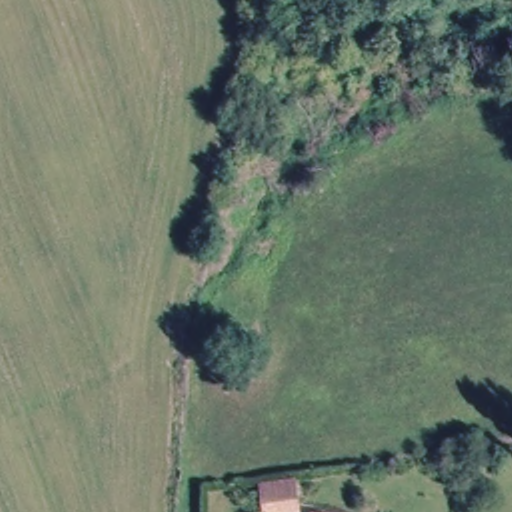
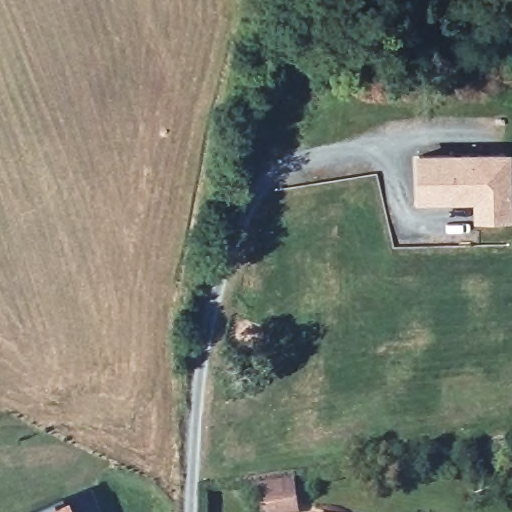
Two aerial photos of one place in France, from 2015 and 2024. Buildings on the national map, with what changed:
new [(509,220),(473,221),(472,201),(415,201),(413,152),(505,151),(509,220)]
unchanged [(292,486),(296,512),(266,512),(263,490),(292,486)]
new [(73,512),(21,512),(66,494),(73,512)]

